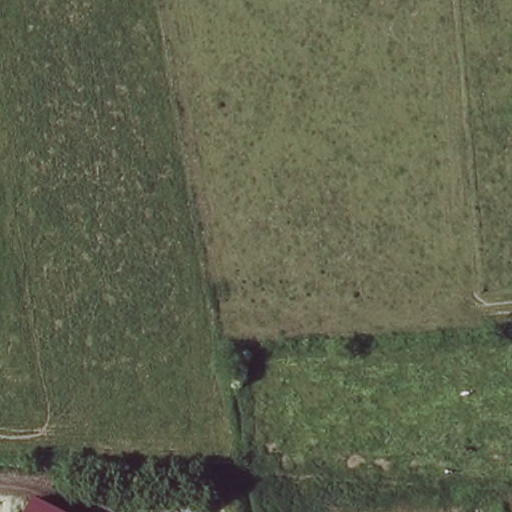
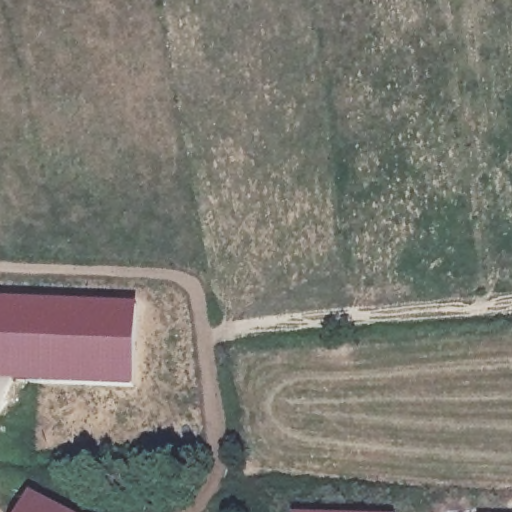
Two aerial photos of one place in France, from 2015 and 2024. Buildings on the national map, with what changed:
new [(135,388),(0,383),(0,300),(139,305),(135,388)]
unchanged [(63,512),(25,512),(32,496),(63,512)]

